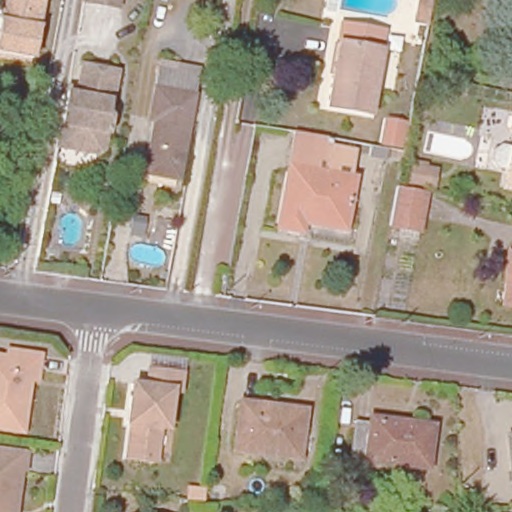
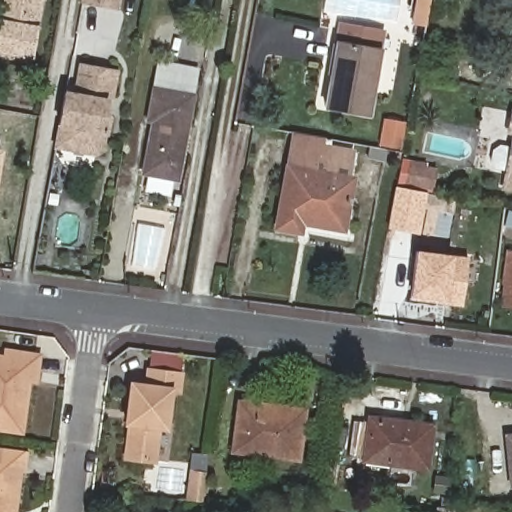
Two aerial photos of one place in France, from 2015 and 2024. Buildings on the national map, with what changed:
unchanged [(0,13),(2,0),(43,0),(31,64),(0,58),(0,13)]
unchanged [(116,9),(81,2),(82,0),(118,0),(116,9)]
unchanged [(337,19),(385,29),(383,47),(332,40),(337,19)]
unchanged [(382,50),(368,117),(327,108),(340,43),(382,50)]
unchanged [(113,70),(107,101),(102,100),(100,112),(104,120),(96,157),(89,164),(75,161),(70,150),(75,129),(55,125),(61,92),(63,85),(72,87),(77,64),(113,70)]
unchanged [(160,66),(195,73),(190,100),(193,101),(177,184),(144,179),(154,126),(150,125),(160,66)]
new [(383,119),(402,123),(397,150),(378,146),(383,119)]
unchanged [(500,193),(512,125),(512,195),(500,193)]
unchanged [(355,151),(353,178),(343,231),(302,223),(300,233),(276,228),(295,134),(322,139),(355,151)]
new [(0,157),(0,149),(1,149),(0,157)]
unchanged [(431,183),(423,224),(393,218),(401,178),(431,183)]
new [(462,305),(407,298),(413,251),(468,258),(462,305)]
unchanged [(502,312),(503,298),(505,287),(509,258),(512,258),(512,313),(502,312)]
unchanged [(0,365),(15,367),(16,360),(49,365),(45,389),(41,388),(38,408),(33,440),(0,435),(0,365)]
unchanged [(182,380),(180,397),(174,397),(167,432),(161,431),(155,463),(127,458),(132,427),(127,426),(134,389),(148,392),(151,376),(182,380)]
unchanged [(308,461),(242,453),(240,471),(227,469),(232,422),(245,423),(249,403),(314,412),(308,461)]
unchanged [(430,475),(368,468),(368,462),(352,460),(357,426),(374,429),(375,424),(435,431),(430,475)]
unchanged [(512,437),(512,485),(511,485),(507,438),(512,437)]
unchanged [(26,512),(0,512),(0,458),(32,463),(26,512)]
unchanged [(212,505),(214,479),(237,480),(236,506),(212,505)]

